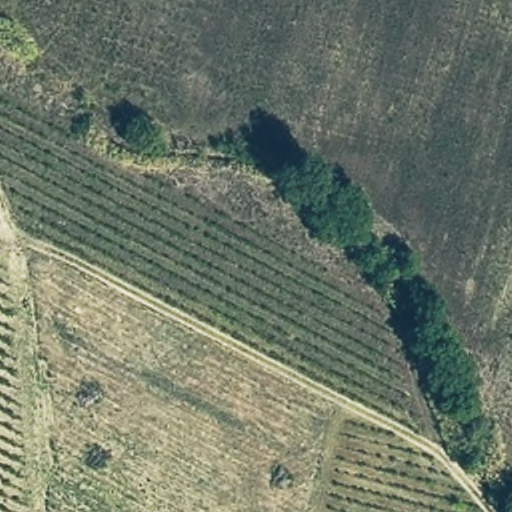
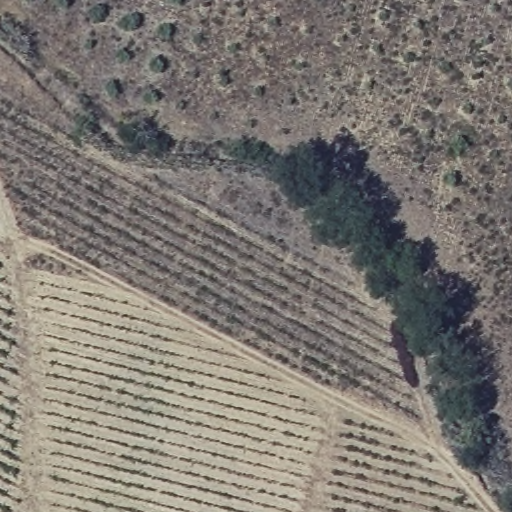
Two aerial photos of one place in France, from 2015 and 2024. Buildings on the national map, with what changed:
[]

